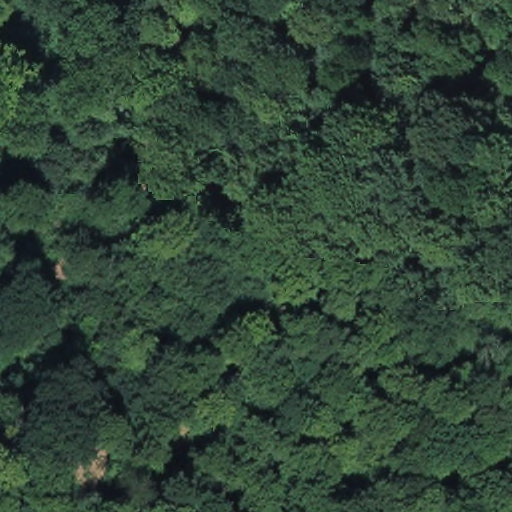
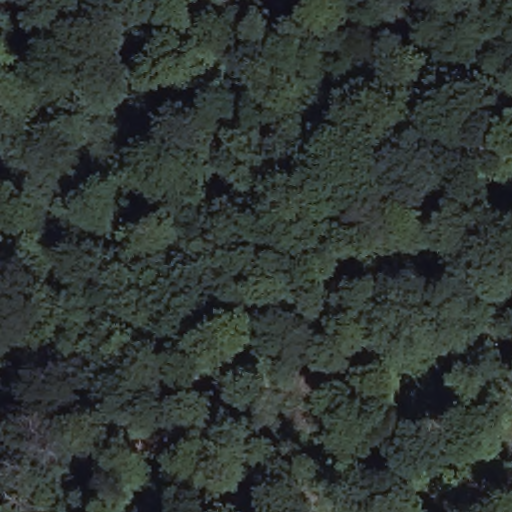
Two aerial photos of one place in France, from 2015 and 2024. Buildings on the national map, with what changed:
unchanged [(430,36),(450,36),(449,56),(430,56),(430,36)]

